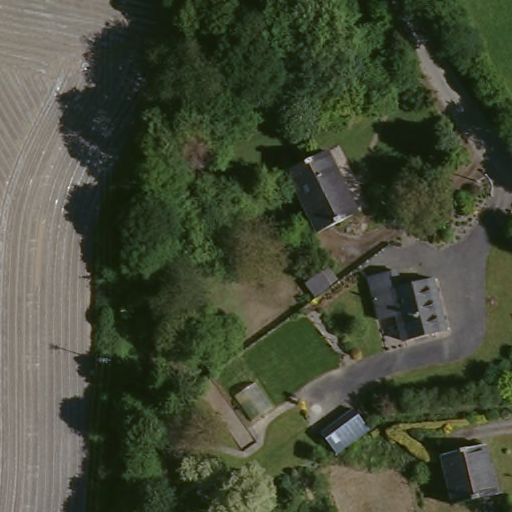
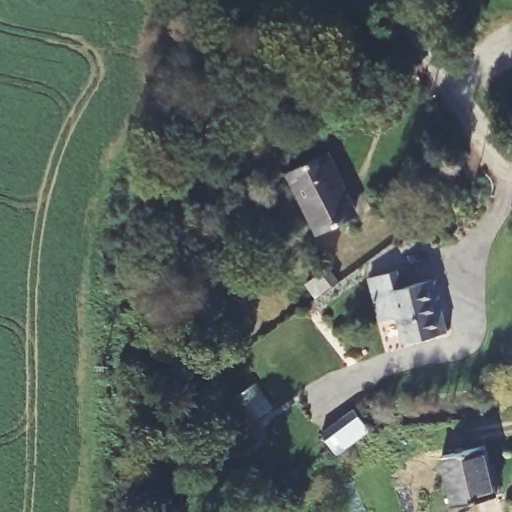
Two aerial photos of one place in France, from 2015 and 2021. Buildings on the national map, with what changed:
unchanged [(283,82),(311,49),(324,63),(300,95),(283,82)]
unchanged [(323,150),(341,184),(335,187),(348,213),(312,231),(283,172),(323,150)]
unchanged [(396,275),(399,290),(432,285),(443,337),(401,346),(396,318),(377,322),(368,281),(396,275)]
unchanged [(319,439),(352,415),(367,436),(334,460),(319,439)]
unchanged [(431,459),(471,448),(484,494),(446,504),(431,459)]
unchanged [(146,490),(152,457),(173,460),(170,494),(146,490)]

